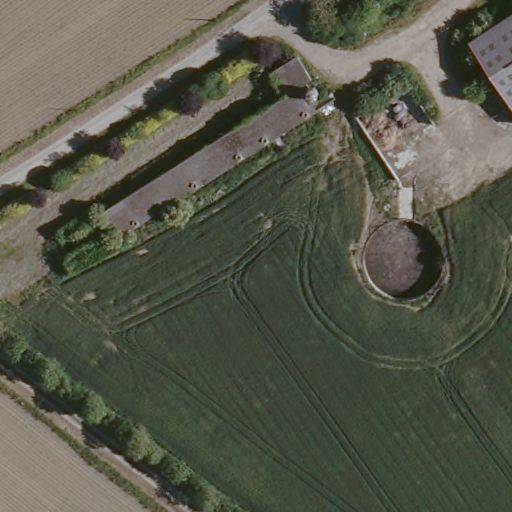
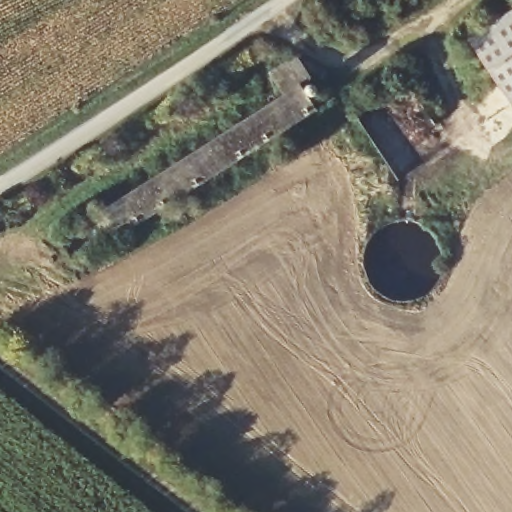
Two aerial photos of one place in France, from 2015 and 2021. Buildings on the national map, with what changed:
unchanged [(466,44),(512,14),(512,115),(466,44)]
unchanged [(113,242),(94,213),(287,93),(273,68),(294,55),(309,77),(301,82),(307,91),(319,84),(329,98),(315,108),(321,118),(274,145),(113,242)]

